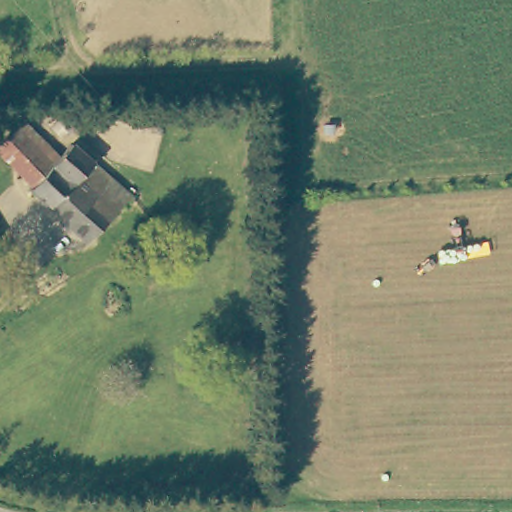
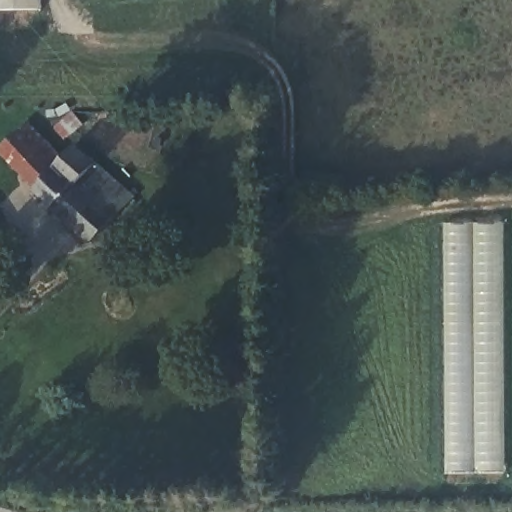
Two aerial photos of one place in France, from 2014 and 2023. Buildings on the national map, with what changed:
unchanged [(24,123),(61,156),(31,186),(0,156),(0,145),(24,123)]
unchanged [(129,198),(85,242),(29,188),(31,186),(61,156),(73,146),(129,198)]
new [(502,222),(504,474),(445,475),(442,223),(502,222)]

